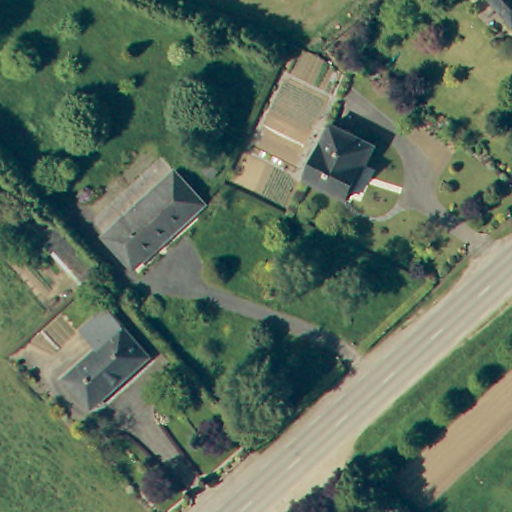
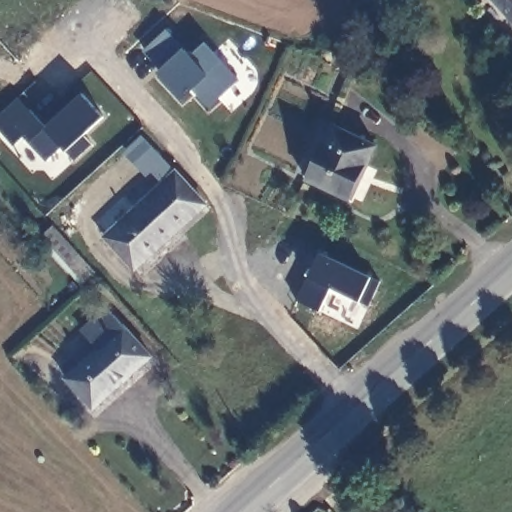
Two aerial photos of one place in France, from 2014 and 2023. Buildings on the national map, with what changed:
unchanged [(496,0),(512,0),(512,19),(496,0)]
new [(167,29),(191,56),(205,42),(239,79),(210,106),(194,89),(183,99),(160,73),(163,70),(145,50),(167,29)]
new [(81,95),(103,118),(82,137),(91,145),(74,162),(61,148),(45,162),(22,138),(12,147),(0,133),(0,114),(17,98),(45,128),(81,95)]
unchanged [(346,201),(305,181),(332,126),(376,148),(346,201)]
new [(150,172),(144,176),(123,153),(141,137),(174,175),(163,185),(150,172)]
unchanged [(174,175),(204,206),(177,232),(174,230),(132,269),(105,239),(174,175)]
unchanged [(51,254),(42,238),(52,228),(56,232),(73,251),(93,273),(80,286),(51,254)]
new [(293,236),(323,250),(321,255),(380,284),(368,308),(331,290),(319,314),(297,302),(312,271),(283,257),(293,236)]
unchanged [(65,377),(98,347),(81,328),(106,305),(150,355),(92,407),(65,377)]

